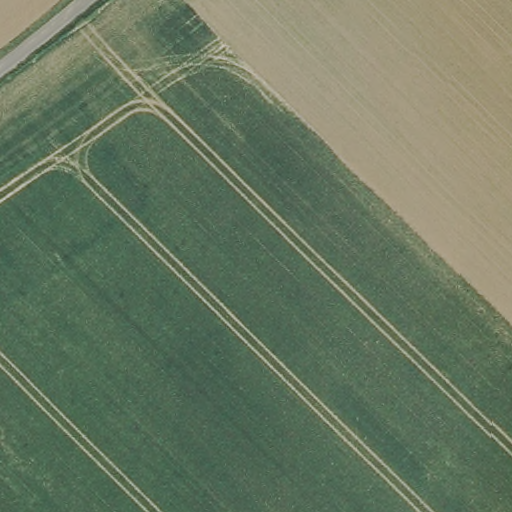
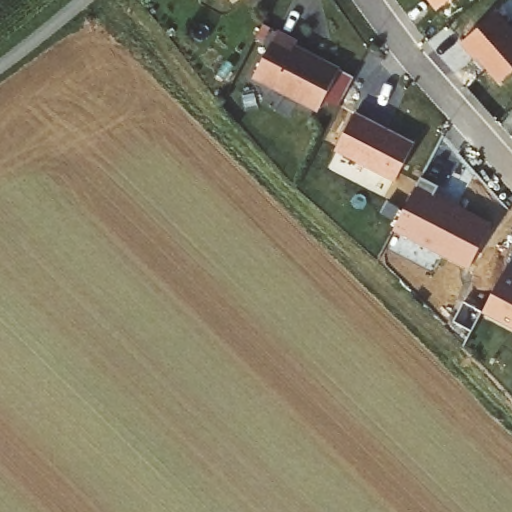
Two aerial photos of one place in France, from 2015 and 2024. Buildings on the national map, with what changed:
new [(437,7),(431,0),(446,0),(437,7)]
new [(512,66),(498,78),(465,40),(500,10),(512,24),(512,66)]
new [(318,109),(255,76),(279,29),(298,38),(297,42),(340,65),(318,109)]
new [(338,148),(357,111),(415,140),(395,178),(338,148)]
new [(395,228),(422,176),(438,185),(436,190),(460,201),(460,204),(492,221),(470,264),(395,228)]
new [(512,326),(483,311),(508,263),(512,265),(512,326)]

